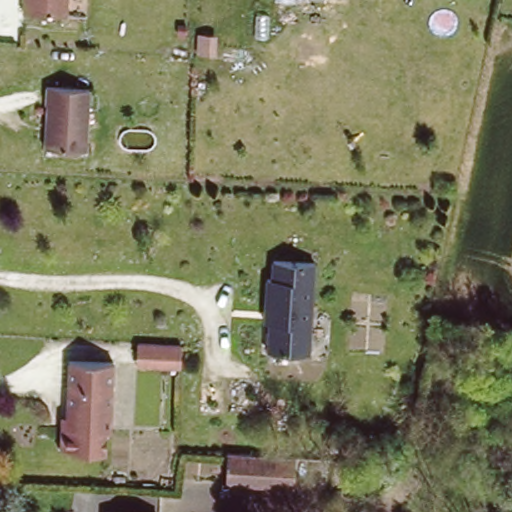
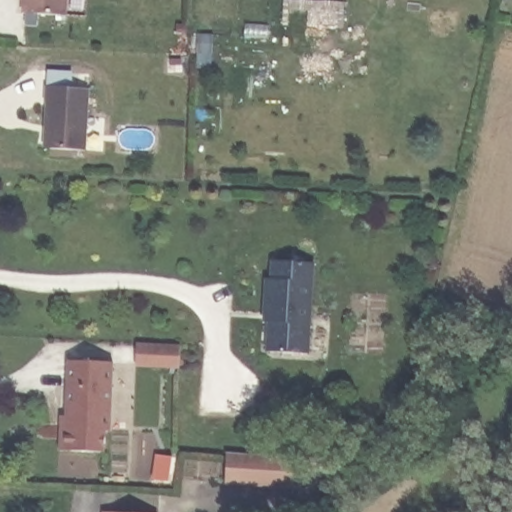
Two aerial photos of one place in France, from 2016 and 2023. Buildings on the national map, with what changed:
unchanged [(25,15),(26,0),(69,0),(67,19),(25,15)]
unchanged [(94,88),(90,154),(50,151),(54,104),(51,104),(52,86),(94,88)]
unchanged [(272,312),(266,312),(267,277),(272,277),(273,262),(316,263),(314,352),(271,352),(272,325),(272,312)]
unchanged [(180,369),(154,367),(137,366),(139,345),(155,346),(181,347),(180,369)]
unchanged [(73,422),(75,365),(120,367),(117,436),(112,436),(111,455),(64,452),(64,431),(65,421),(73,422)]
unchanged [(302,461),(300,490),(232,485),(235,456),(302,461)]
unchanged [(113,511),(122,511),(151,512),(113,512),(113,511)]

